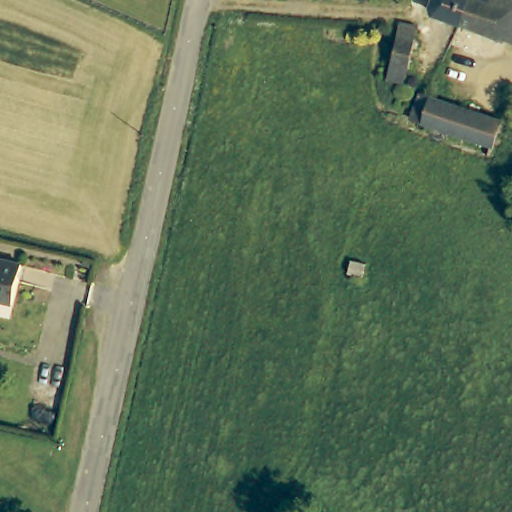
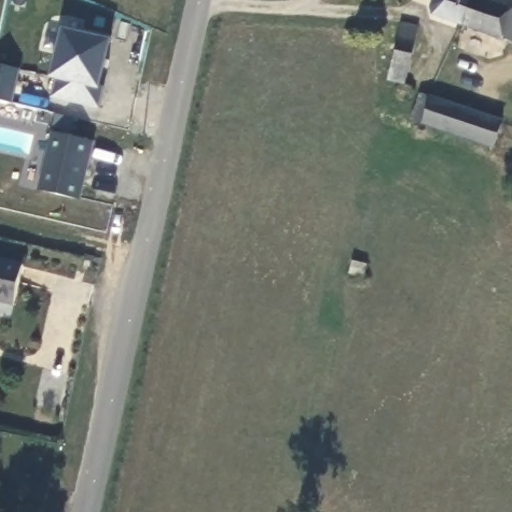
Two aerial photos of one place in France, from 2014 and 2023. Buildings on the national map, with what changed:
unchanged [(507,0),(512,0),(512,41),(463,24),(457,21),(466,0),(507,0)]
unchanged [(395,49),(398,33),(401,24),(417,26),(407,81),(389,79),(395,49)]
new [(50,77),(62,28),(112,39),(101,90),(101,109),(52,97),(50,77)]
new [(0,102),(0,67),(19,70),(11,105),(0,102)]
unchanged [(413,95),(412,97),(411,100),(408,101),(406,102),(403,102),(400,101),(398,100),(396,98),(395,95),(396,92),(397,90),(398,88),(401,86),(403,86),(406,86),(408,86),(410,88),(412,90),(413,91),(413,95)]
unchanged [(501,119),(495,143),(423,124),(413,121),(420,98),(425,99),(431,101),(496,118),(501,119)]
new [(80,201),(37,190),(52,131),(94,142),(80,201)]
unchanged [(0,303),(0,262),(30,269),(21,308),(0,303)]

